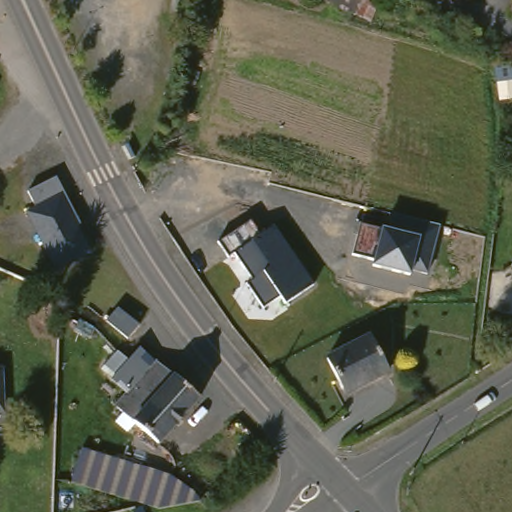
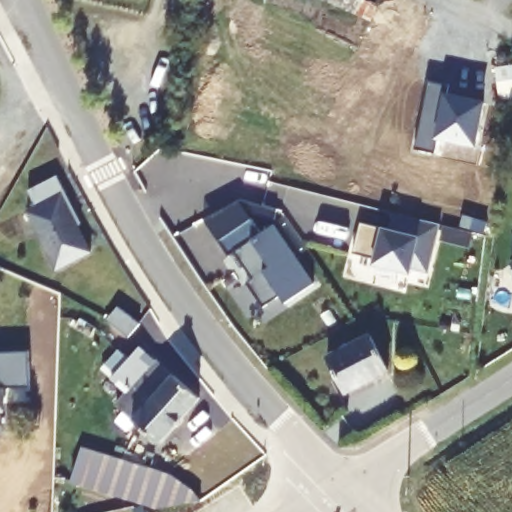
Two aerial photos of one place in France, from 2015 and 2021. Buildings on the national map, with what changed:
unchanged [(369,20),(319,0),(379,0),(369,20)]
new [(429,82),(450,86),(448,96),(485,103),(477,145),(440,139),(437,155),(417,150),(429,82)]
unchanged [(55,175),(82,224),(77,227),(91,255),(47,273),(22,213),(34,207),(27,189),(55,175)]
unchanged [(430,272),(412,268),(411,273),(374,265),(374,260),(354,256),(362,222),(384,227),(399,230),(402,216),(441,225),(430,272)]
unchanged [(286,303),(281,297),(264,310),(246,284),(252,280),(235,253),(229,256),(220,242),(250,222),(260,236),(275,229),(314,286),(286,303)]
unchanged [(391,377),(371,388),(367,380),(344,391),(330,361),(372,340),(391,377)]
unchanged [(108,376),(122,355),(131,361),(141,349),(157,362),(133,396),(108,376)]
unchanged [(162,444),(120,413),(133,396),(157,362),(199,395),(162,444)]
unchanged [(2,411),(0,412),(0,376),(0,375),(2,411)]
unchanged [(73,487),(83,449),(169,473),(202,501),(153,510),(73,487)]

